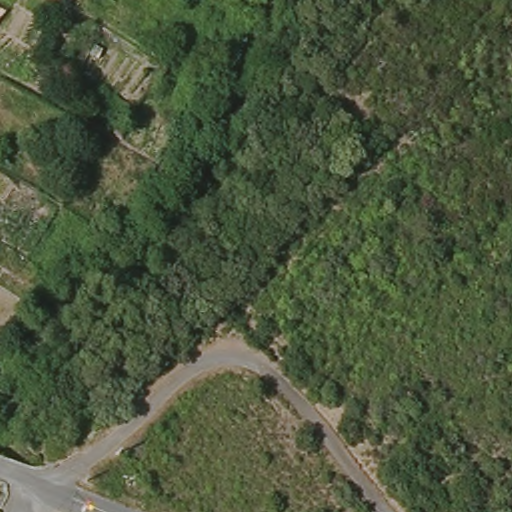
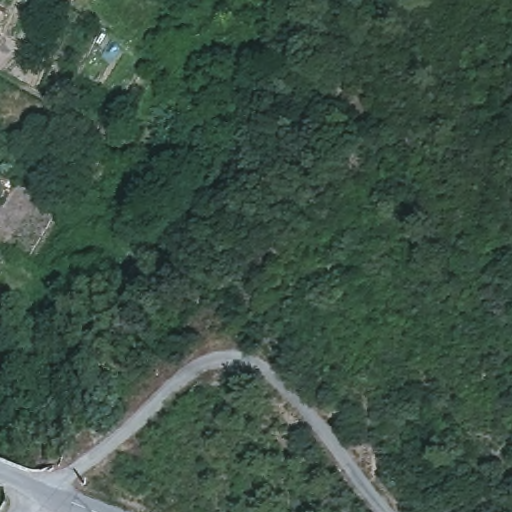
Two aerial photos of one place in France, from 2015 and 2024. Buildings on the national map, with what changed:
unchanged [(65,201),(77,184),(115,206),(104,224),(65,201)]

